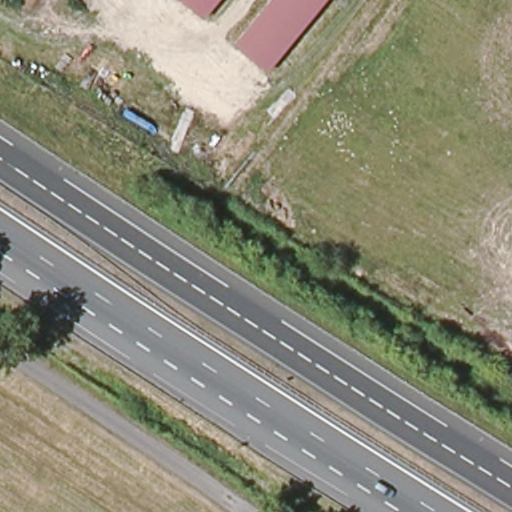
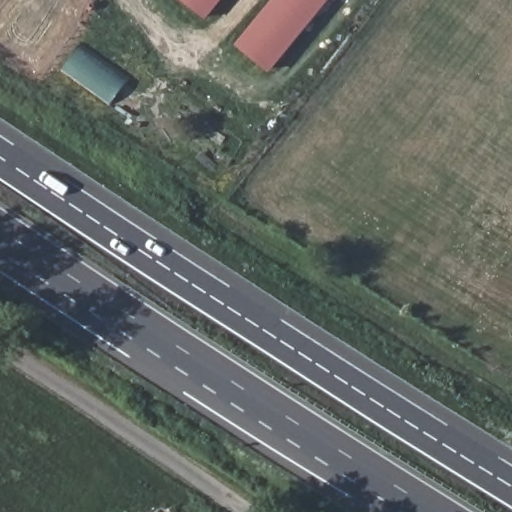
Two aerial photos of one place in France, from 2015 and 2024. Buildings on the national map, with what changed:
unchanged [(178,0),(217,0),(201,20),(178,0)]
unchanged [(239,44),(275,0),(326,0),(269,71),(239,44)]
new [(129,79),(111,103),(62,68),(80,43),(129,79)]

